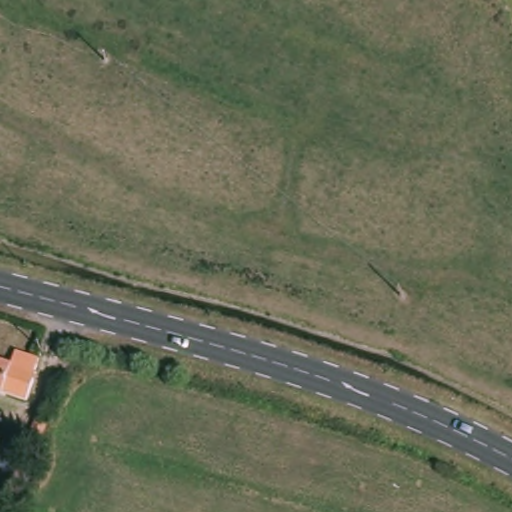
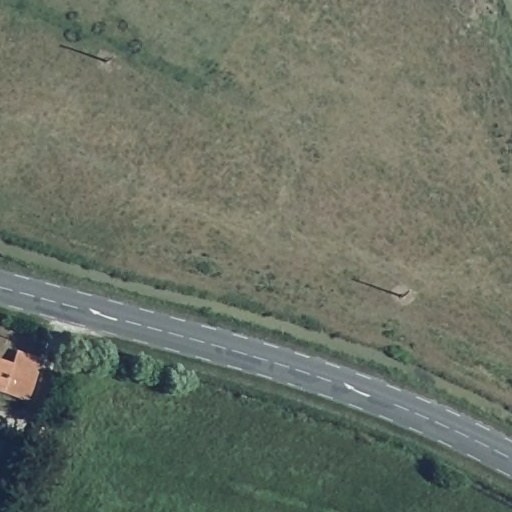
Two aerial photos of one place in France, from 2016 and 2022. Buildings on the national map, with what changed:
unchanged [(28,392),(0,383),(0,356),(35,367),(28,392)]
unchanged [(44,426),(41,435),(33,432),(36,423),(44,426)]
unchanged [(4,498),(0,497),(0,450),(22,457),(4,498)]

